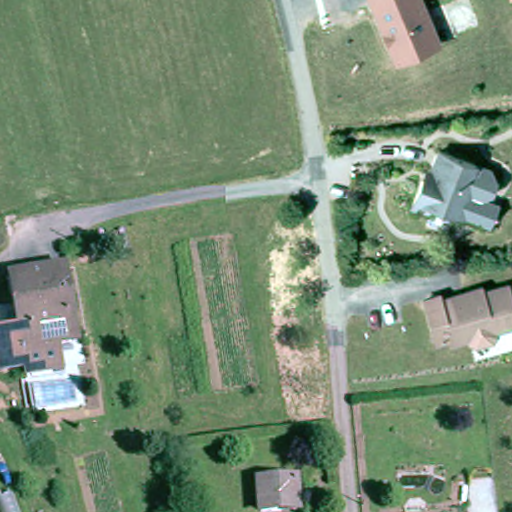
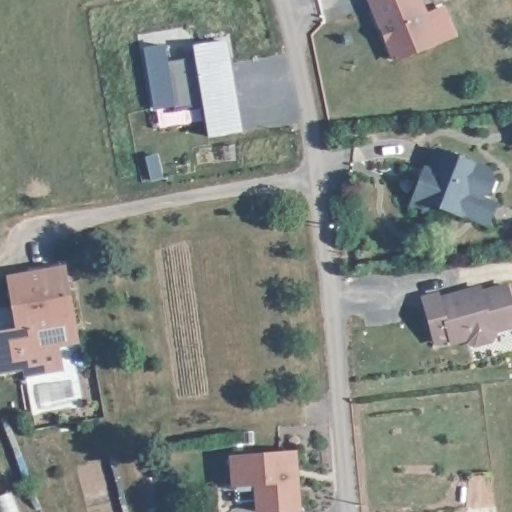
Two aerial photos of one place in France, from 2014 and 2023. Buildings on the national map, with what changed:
unchanged [(394,63),(367,0),(421,0),(439,44),(394,63)]
unchanged [(439,44),(426,12),(447,2),(458,36),(439,44)]
new [(168,59),(196,56),(194,46),(226,41),(230,62),(233,93),(238,131),(205,135),(202,104),(175,107),(175,102),(154,105),(146,46),(166,43),(168,59)]
unchanged [(457,205),(456,207),(432,196),(428,205),(412,198),(423,170),(431,172),(435,163),(432,162),(440,143),(475,157),(490,162),(495,174),(490,185),(481,189),(473,186),(465,208),(457,205)]
unchanged [(70,367),(37,371),(36,362),(33,363),(25,342),(8,303),(27,300),(22,273),(64,267),(73,266),(84,337),(80,337),(65,340),(70,367)]
unchanged [(426,292),(443,288),(445,292),(451,291),(457,293),(468,291),(468,287),(485,282),(487,287),(512,281),(512,322),(497,326),(498,330),(495,336),(480,340),(472,337),(471,333),(454,337),(452,332),(438,336),(426,292)]
unchanged [(0,304),(8,303),(25,342),(33,363),(10,366),(9,358),(0,359),(0,304)]
new [(265,479),(267,510),(261,512),(256,512),(255,500),(238,501),(236,487),(232,487),(230,455),(299,451),(303,477),(265,479)]
unchanged [(283,509),(267,510),(265,479),(303,477),(304,501),(305,508),(283,509)]

